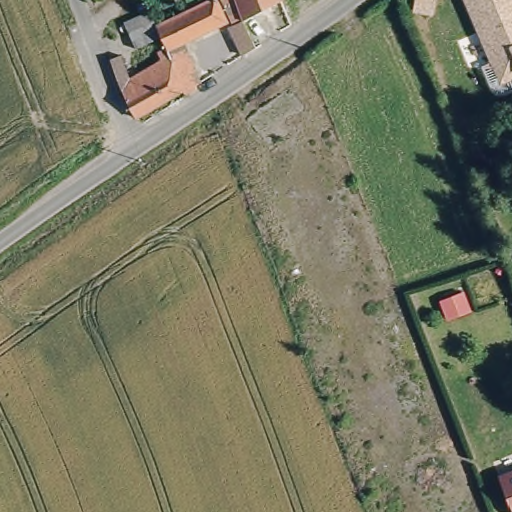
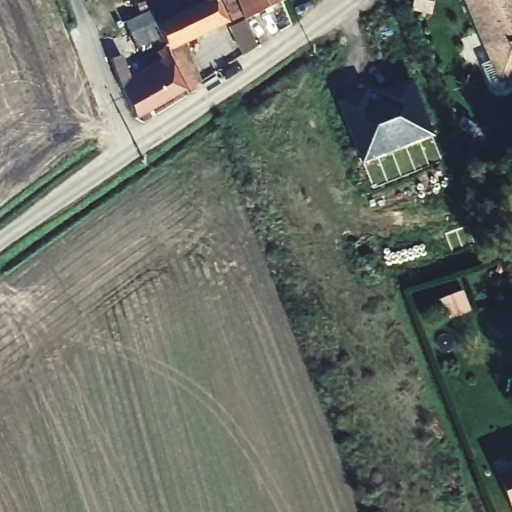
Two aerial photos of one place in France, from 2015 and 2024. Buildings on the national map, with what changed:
unchanged [(211,0),(218,17),(182,35),(200,75),(193,78),(196,84),(185,90),(182,82),(163,39),(155,19),(201,0),(211,0)]
unchanged [(238,54),(226,23),(232,21),(222,0),(236,0),(255,46),(238,54)]
unchanged [(243,0),(287,0),(287,2),(250,17),(243,0)]
unchanged [(468,0),(512,0),(512,76),(502,80),(495,63),(468,0)]
unchanged [(108,48),(117,45),(127,68),(155,56),(150,45),(163,39),(182,82),(131,106),(108,48)]
new [(340,104),(367,94),(372,106),(382,102),(380,95),(412,82),(433,137),(364,164),(340,104)]
unchanged [(512,510),(499,478),(512,473),(512,510)]

